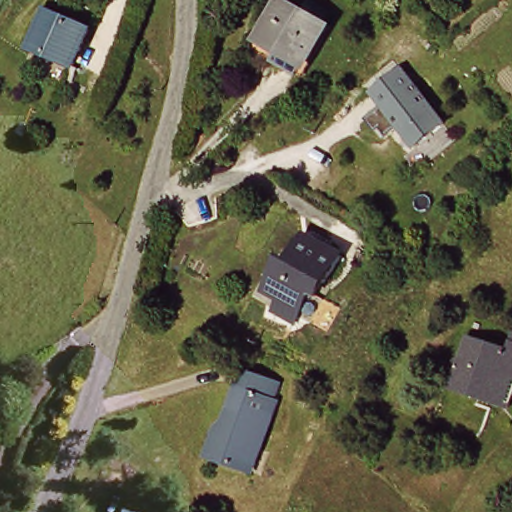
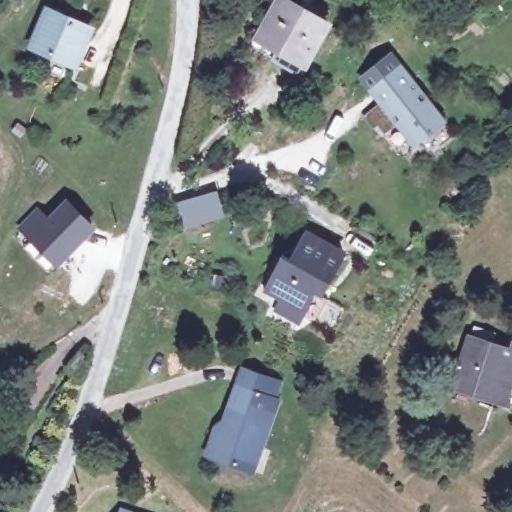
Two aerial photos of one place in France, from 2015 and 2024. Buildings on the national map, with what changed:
unchanged [(256,34),(277,1),(285,5),(288,0),(308,0),(335,15),(311,56),(306,66),(264,39),(256,34)]
unchanged [(49,5),(91,22),(76,65),(32,49),(49,5)]
unchanged [(439,125),(410,144),(372,86),(402,67),(439,125)]
new [(39,209),(48,218),(67,200),(97,229),(58,269),(17,230),(39,209)]
unchanged [(276,298),(284,288),(270,276),(295,249),(301,255),(322,231),(351,258),(329,282),(324,277),(302,304),(294,314),(276,298)]
unchanged [(471,340),(509,349),(512,342),(512,390),(509,399),(494,396),(454,388),(471,340)]
unchanged [(221,429),(227,431),(240,367),(277,376),(274,392),(280,394),(269,440),(260,438),(255,462),(215,450),(221,429)]
unchanged [(137,512),(128,512),(131,508),(137,512)]

